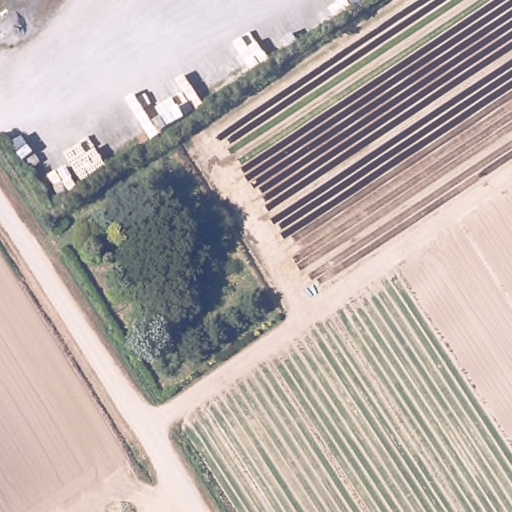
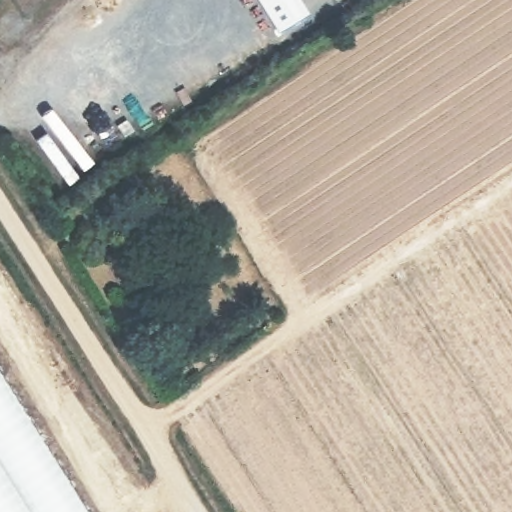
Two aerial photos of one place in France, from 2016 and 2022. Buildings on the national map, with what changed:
new [(88,512),(0,512),(0,370),(88,512)]

